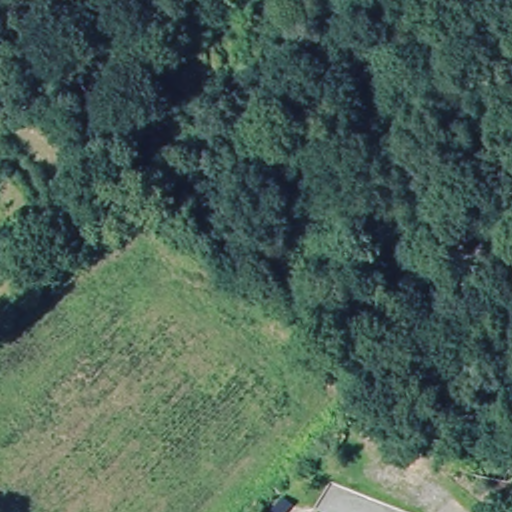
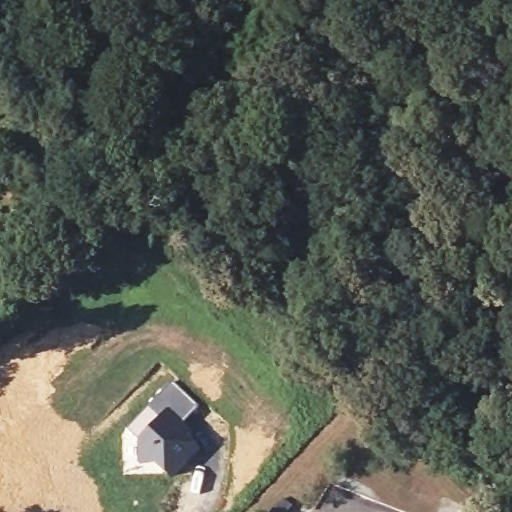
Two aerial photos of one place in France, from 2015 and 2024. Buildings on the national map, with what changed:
new [(169,380),(197,405),(182,422),(202,447),(169,478),(152,467),(137,466),(135,441),(135,440),(124,428),(169,380)]
unchanged [(275,512),(287,498),(295,505),(290,512),(275,512)]

